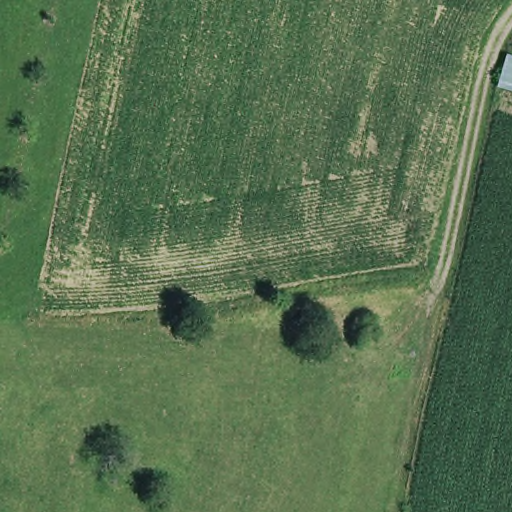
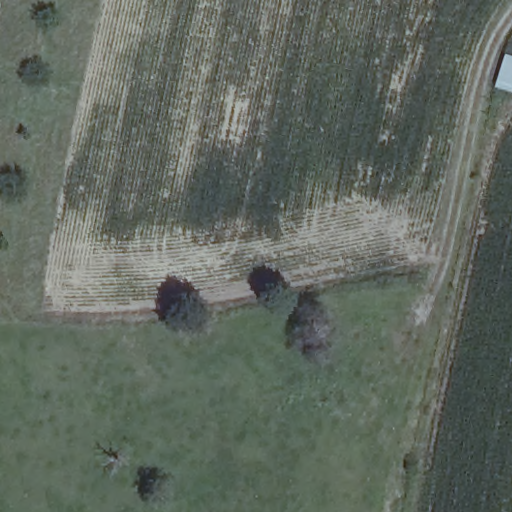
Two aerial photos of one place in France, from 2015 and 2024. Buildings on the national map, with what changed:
unchanged [(503,88),(501,62),(512,62),(512,88),(503,88)]

